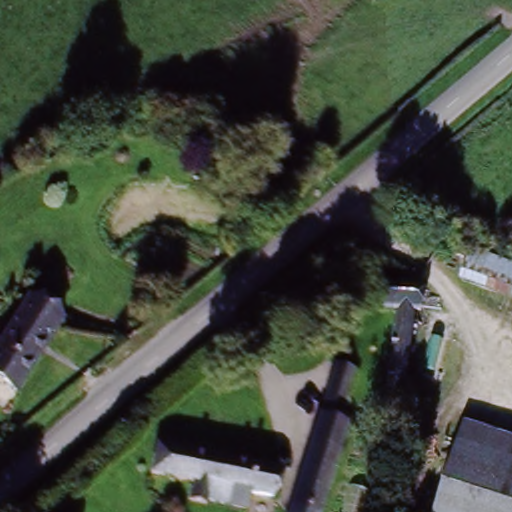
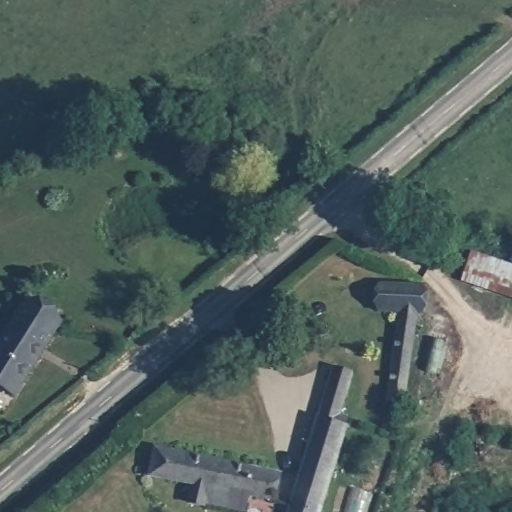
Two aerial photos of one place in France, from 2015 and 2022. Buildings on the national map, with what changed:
unchanged [(475,256),(512,270),(512,296),(466,280),(473,262),(475,256)]
unchanged [(423,293),(422,294),(420,318),(396,316),(376,314),(381,284),(423,293)]
unchanged [(0,382),(0,345),(28,302),(63,324),(17,394),(0,382)]
unchanged [(420,318),(413,396),(389,394),(396,316),(420,318)]
unchanged [(355,371),(341,416),(341,419),(340,423),(315,512),(288,512),(330,364),(355,371)]
demolished [(512,512),(440,512),(467,428),(512,442),(512,512)]
unchanged [(253,492),(249,511),(195,496),(199,480),(153,469),(159,444),(278,472),(272,497),(253,492)]

